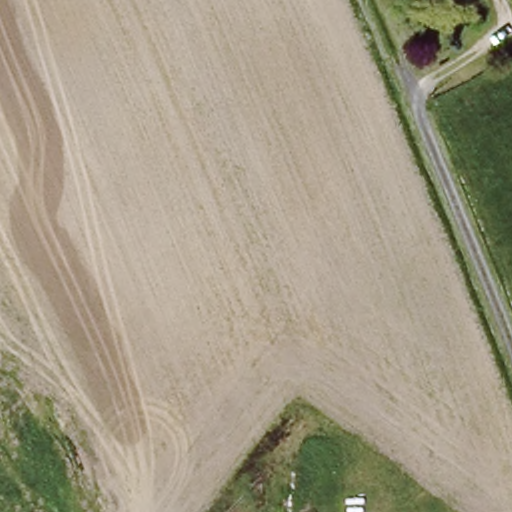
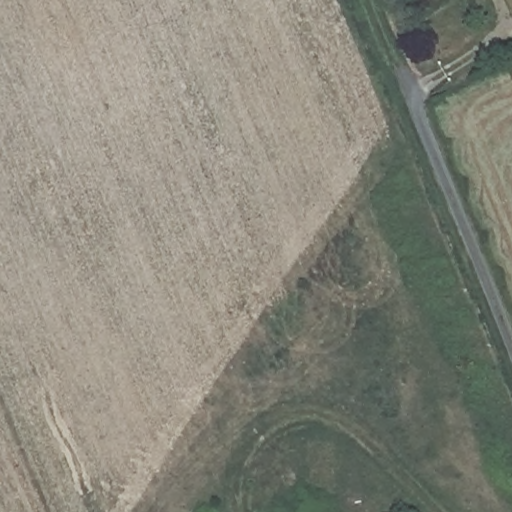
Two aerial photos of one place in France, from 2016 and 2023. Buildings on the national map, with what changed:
[]

